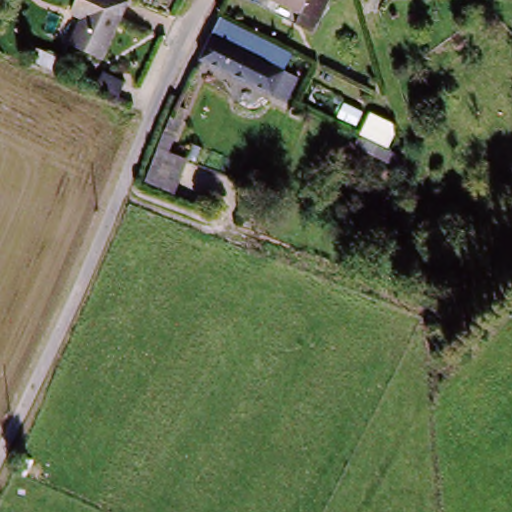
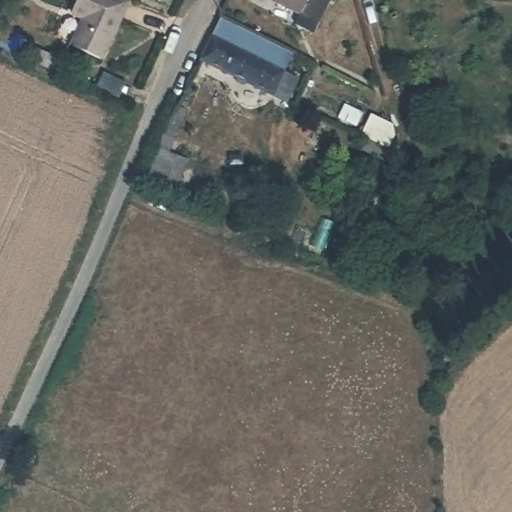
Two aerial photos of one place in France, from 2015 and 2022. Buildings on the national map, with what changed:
unchanged [(75,42),(86,13),(75,9),(78,0),(133,0),(109,55),(75,42)]
unchanged [(322,30),(260,0),(334,0),(322,30)]
unchanged [(270,97),(202,61),(214,37),(282,74),(270,97)]
unchanged [(475,247),(490,229),(512,246),(512,255),(501,270),(475,247)]

